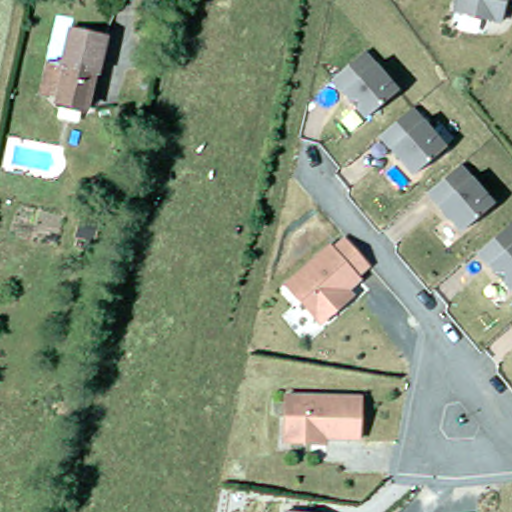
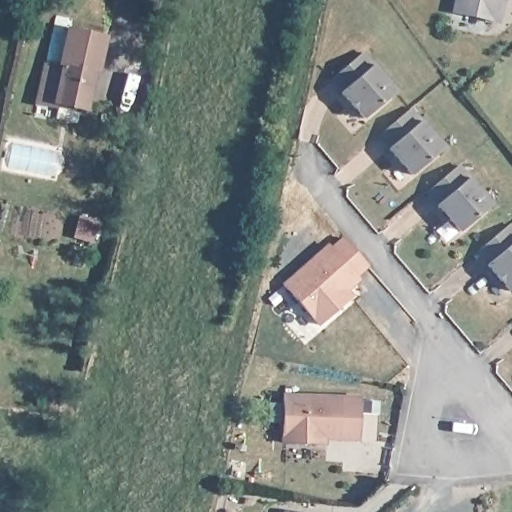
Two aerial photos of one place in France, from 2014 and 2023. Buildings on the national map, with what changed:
unchanged [(495,22),(450,12),(453,0),(501,0),(495,22)]
unchanged [(69,68),(73,52),(58,48),(65,17),(81,21),(79,32),(115,41),(105,77),(104,76),(95,113),(62,104),(64,100),(50,96),(57,65),(69,68)]
unchanged [(401,74),(369,101),(336,62),(368,35),(401,74)]
unchanged [(449,131),(417,158),(384,119),(416,92),(449,131)]
unchanged [(468,154),(497,189),(465,215),(437,182),(432,176),(464,149),(468,154)]
unchanged [(482,236),(512,212),(512,272),(482,236)]
unchanged [(335,312),(319,327),(284,287),(329,248),(332,251),(343,241),(367,268),(355,279),(359,282),(347,293),(352,298),(335,312)]
unchanged [(279,443),(280,396),(355,398),(353,439),(320,438),(319,444),(312,443),(279,443)]

